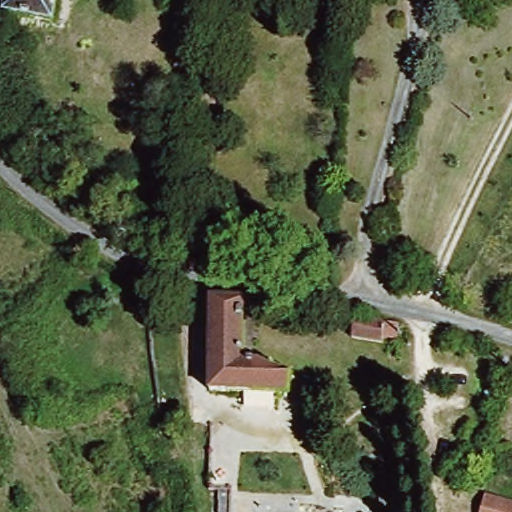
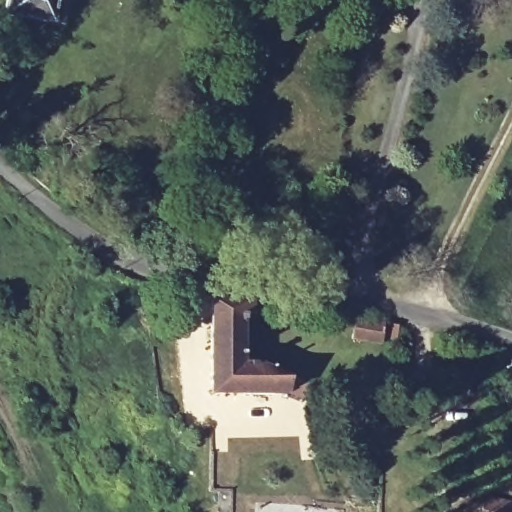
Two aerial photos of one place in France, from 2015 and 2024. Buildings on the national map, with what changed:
unchanged [(44,22),(0,14),(3,0),(48,0),(44,22)]
unchanged [(281,390),(201,391),(208,300),(251,303),(249,315),(246,315),(241,360),(269,363),(270,367),(284,370),(281,390)]
unchanged [(387,342),(355,336),(359,315),(391,321),(387,342)]
unchanged [(473,512),(480,490),(512,501),(512,512),(473,512)]

